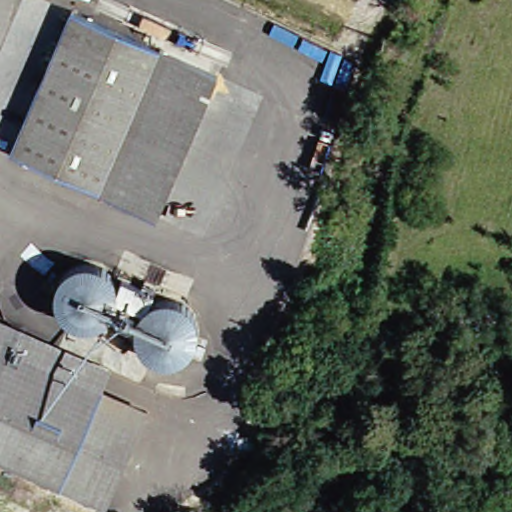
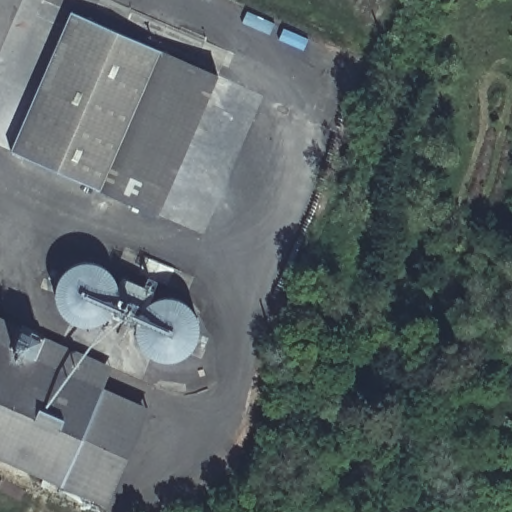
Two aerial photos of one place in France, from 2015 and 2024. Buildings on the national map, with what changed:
unchanged [(9,153),(69,13),(165,55),(105,194),(9,153)]
unchanged [(217,78),(156,217),(105,194),(165,55),(217,78)]
unchanged [(96,389),(0,348),(0,325),(105,370),(96,389)]
unchanged [(76,438),(0,405),(0,348),(96,389),(76,438)]
unchanged [(96,389),(144,409),(99,506),(0,462),(0,405),(76,438),(96,389)]

